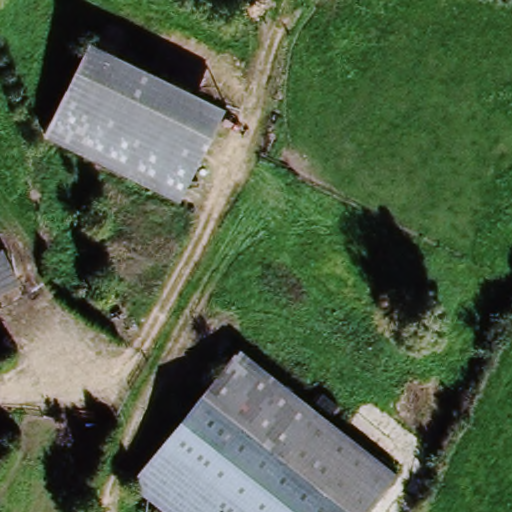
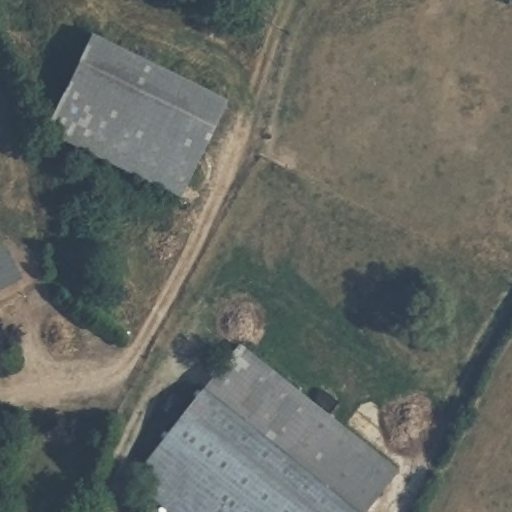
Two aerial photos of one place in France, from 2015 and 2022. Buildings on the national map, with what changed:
unchanged [(219,102),(182,187),(46,126),(85,42),(219,102)]
unchanged [(3,245),(16,273),(0,282),(0,247),(3,245)]
unchanged [(166,512),(129,485),(231,349),(311,410),(314,407),(396,470),(363,512),(166,512)]

